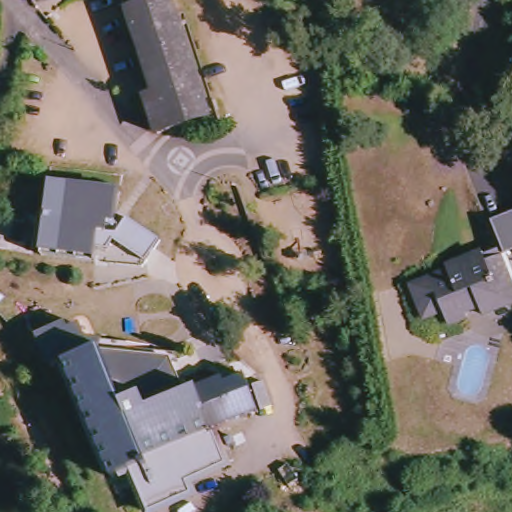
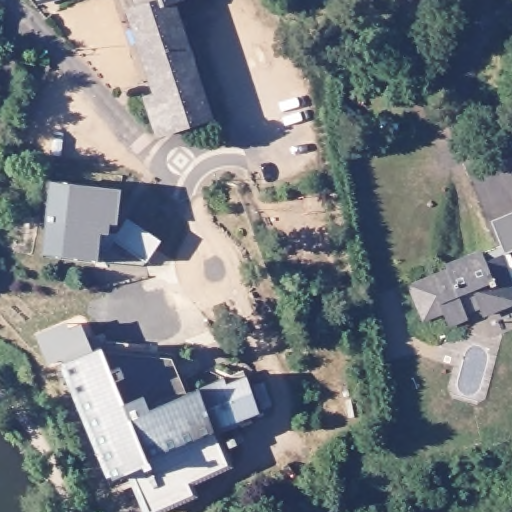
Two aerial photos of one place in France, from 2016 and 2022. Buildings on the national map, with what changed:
unchanged [(40,5),(38,0),(58,0),(40,5)]
unchanged [(175,1),(212,118),(163,135),(151,99),(161,96),(133,12),(146,9),(143,0),(179,0),(175,1)]
unchanged [(163,250),(148,271),(117,248),(113,255),(103,254),(102,268),(48,262),(57,188),(125,196),(122,227),(114,227),(113,235),(113,240),(120,241),(127,232),(131,226),(135,229),(163,250)]
unchanged [(508,256),(496,221),(512,215),(512,254),(508,256)]
unchanged [(44,221),(39,259),(0,254),(3,226),(27,229),(28,220),(44,221)]
unchanged [(504,257),(512,279),(512,307),(502,311),(487,316),(483,305),(465,311),(468,319),(449,326),(443,311),(426,317),(413,285),(452,271),(450,266),(492,251),(495,261),(498,260),(504,257)]
unchanged [(62,362),(49,367),(37,340),(65,328),(68,335),(80,329),(92,356),(65,367),(62,362)]
unchanged [(145,481),(136,483),(133,476),(115,483),(65,367),(92,356),(98,352),(96,346),(125,346),(125,353),(169,362),(188,400),(222,387),(224,392),(245,385),(259,420),(223,436),(227,443),(145,481)]
unchanged [(274,408),(263,412),(254,391),(261,387),(274,408)]
unchanged [(227,443),(237,467),(190,487),(195,501),(166,512),(147,512),(136,483),(145,481),(227,443)]

